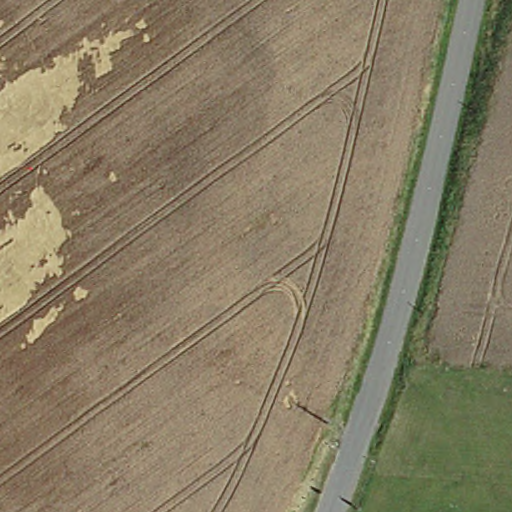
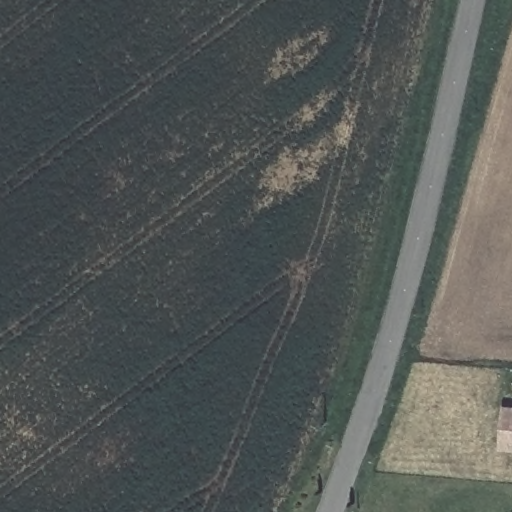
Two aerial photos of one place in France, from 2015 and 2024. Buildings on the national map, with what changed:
new [(503,405),(512,406),(512,451),(499,450),(503,405)]

